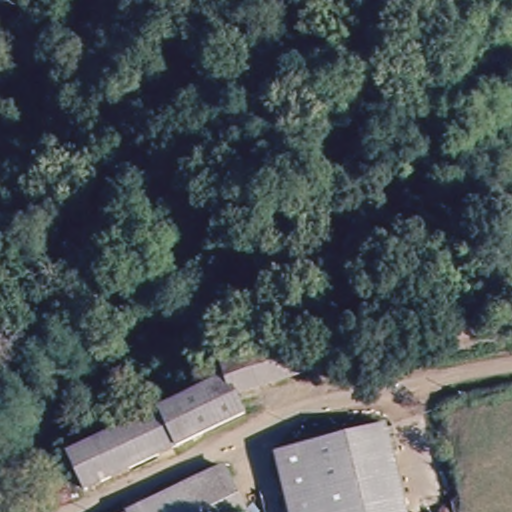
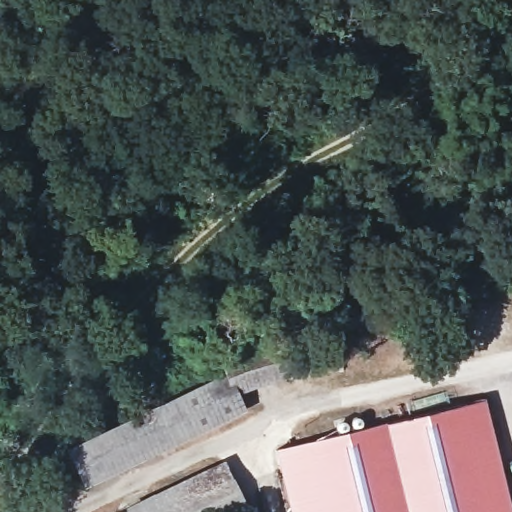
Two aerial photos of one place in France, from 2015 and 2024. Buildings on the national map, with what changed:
unchanged [(216,352),(295,332),(306,367),(307,372),(233,392),(223,371),(216,352)]
unchanged [(233,392),(242,413),(82,487),(64,447),(216,374),(223,371),(233,392)]
new [(512,509),(512,512),(408,512),(408,510),(385,432),(383,425),(483,399),(512,509)]
unchanged [(399,512),(288,512),(272,452),(335,434),(382,421),(385,432),(408,510),(399,512)]
unchanged [(220,461),(222,467),(245,512),(127,512),(124,507),(123,505),(220,461)]
unchanged [(127,512),(114,512),(124,507),(127,512)]
unchanged [(399,512),(408,510),(408,512),(399,512)]

